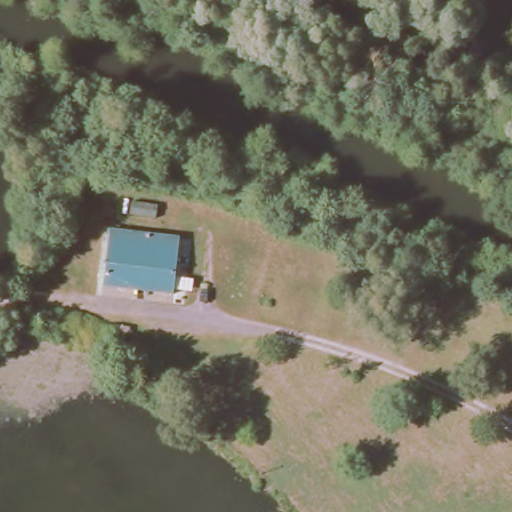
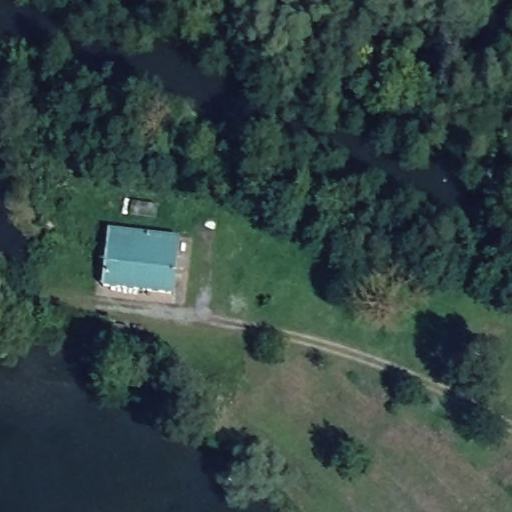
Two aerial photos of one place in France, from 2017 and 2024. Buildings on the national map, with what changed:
unchanged [(177,237),(174,301),(102,293),(108,231),(177,237)]

